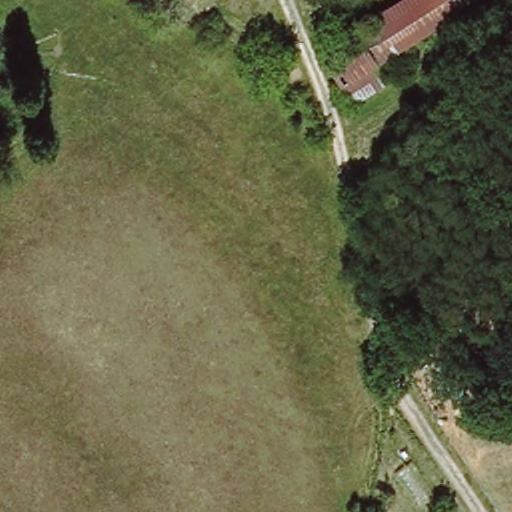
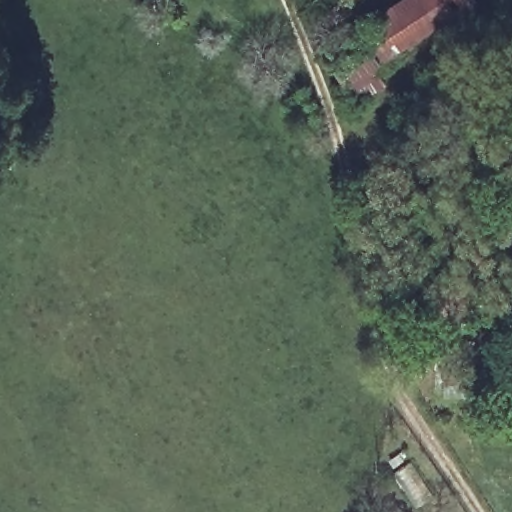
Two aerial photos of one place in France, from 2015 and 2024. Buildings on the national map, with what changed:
unchanged [(470,0),(377,64),(389,81),(361,100),(328,52),(401,0),(470,0)]

